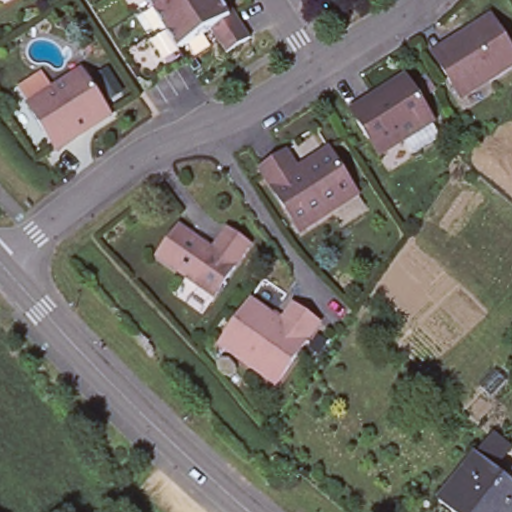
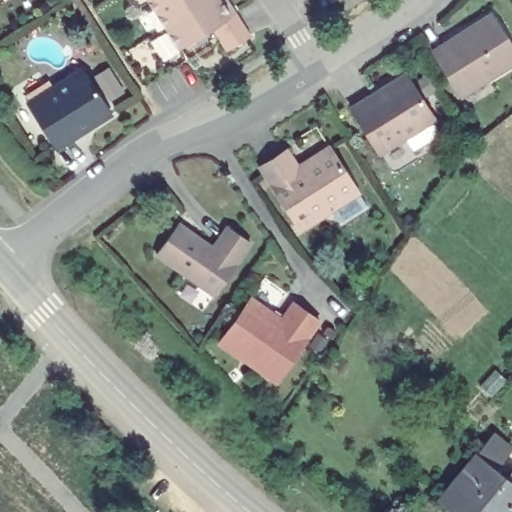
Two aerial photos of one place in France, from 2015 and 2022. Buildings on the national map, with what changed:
unchanged [(214,30),(182,50),(150,0),(229,0),(236,11),(245,25),(253,37),(230,52),(222,40),(214,30)]
unchanged [(512,63),(459,96),(434,57),(431,51),(464,30),(487,15),(512,50),(512,63)]
unchanged [(81,131),(58,145),(29,99),(84,64),(109,104),(114,110),(81,131)]
unchanged [(409,150),(402,138),(376,154),(346,106),(371,92),(404,72),(409,80),(432,120),(429,121),(437,135),(409,150)]
unchanged [(331,214),(300,233),(261,170),(288,153),(298,170),(331,149),(356,190),(359,195),(331,214)]
unchanged [(176,225),(210,248),(225,226),(248,242),(212,293),(156,253),(176,225)]
unchanged [(223,340),(249,302),(278,323),(290,305),(316,324),(274,385),(246,365),(218,346),(223,340)]
unchanged [(438,497),(475,452),(492,431),(512,446),(494,468),(512,482),(512,512),(455,512),(438,497)]

